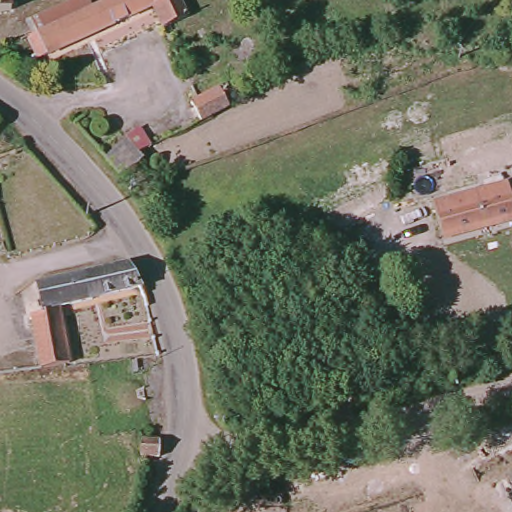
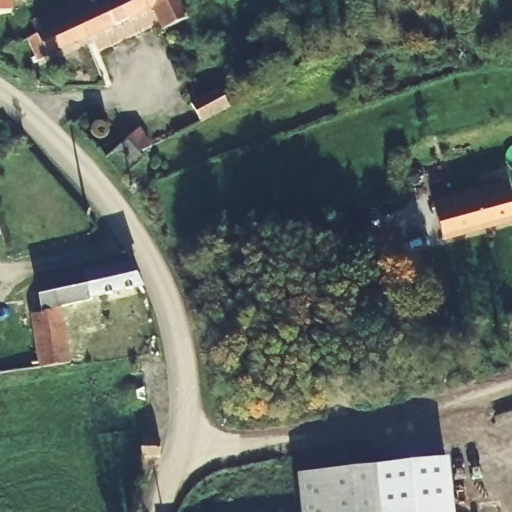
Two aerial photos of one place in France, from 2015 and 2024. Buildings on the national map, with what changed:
unchanged [(0,17),(0,0),(12,0),(15,12),(0,17)]
unchanged [(85,4),(89,10),(92,14),(116,0),(183,0),(193,15),(182,23),(167,31),(155,11),(43,74),(29,48),(37,43),(32,34),(69,12),(85,4)]
unchanged [(185,118),(192,112),(187,105),(222,79),(238,102),(195,132),(185,118)]
unchanged [(140,176),(127,185),(78,130),(95,115),(125,150),(142,135),(158,155),(146,165),(150,170),(140,176)]
unchanged [(432,205),(483,191),(505,185),(510,198),(512,207),(512,224),(445,241),(432,205)]
unchanged [(35,320),(45,317),(38,287),(129,265),(144,289),(93,300),(94,305),(62,310),(74,367),(55,370),(43,371),(42,361),(35,320)]
unchanged [(158,433),(160,450),(152,450),(140,450),(142,434),(152,433),(158,433)]
new [(448,459),(453,512),(378,512),(373,466),(448,459)]
new [(378,512),(299,512),(295,475),(373,466),(378,512)]

